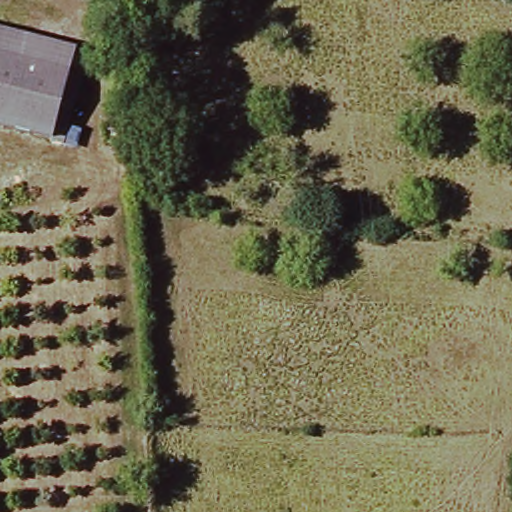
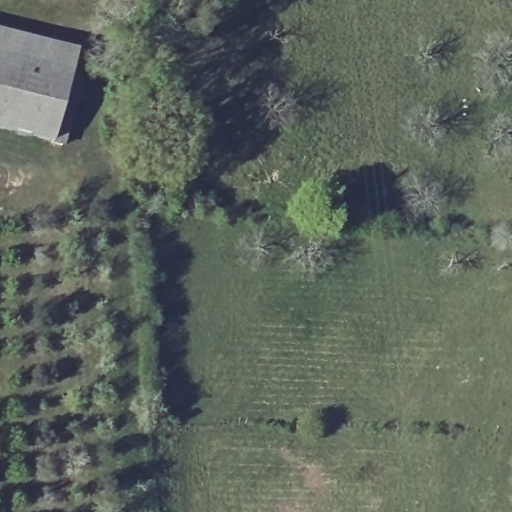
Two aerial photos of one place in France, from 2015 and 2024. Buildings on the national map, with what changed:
unchanged [(0,38),(69,43),(68,66),(0,61),(0,38)]
unchanged [(65,131),(0,127),(0,61),(68,66),(65,131)]

